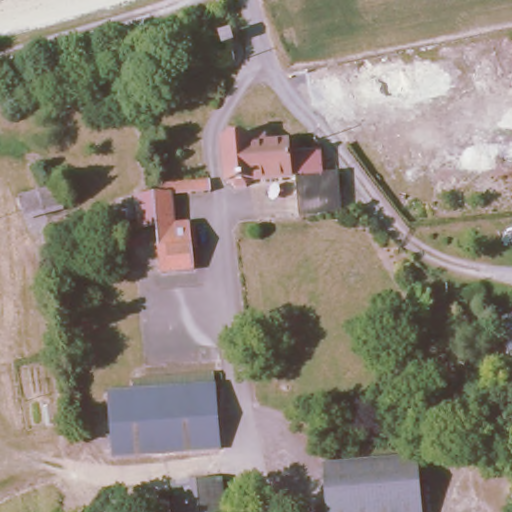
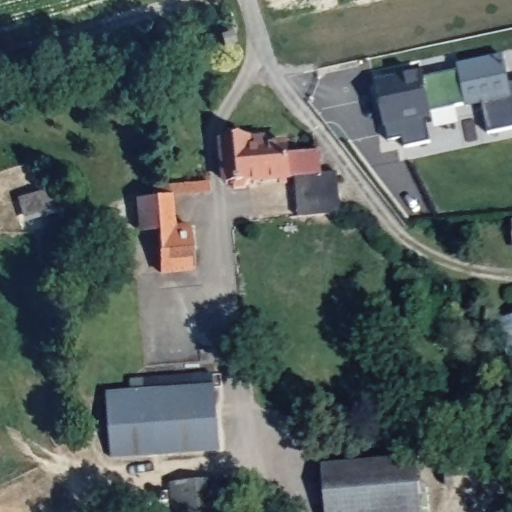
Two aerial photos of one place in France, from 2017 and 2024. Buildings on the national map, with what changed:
unchanged [(216,42),(215,30),(228,29),(230,42),(216,42)]
demolished [(330,103),(324,72),(393,60),(396,66),(448,57),(452,82),(330,103)]
new [(422,78),(457,72),(456,67),(502,57),(507,85),(512,84),(512,129),(487,135),(480,103),(422,115),(427,144),(403,148),(405,157),(392,159),(373,84),(421,74),(422,78)]
unchanged [(290,174),(221,177),(218,132),(258,129),(260,137),(279,137),(282,149),(321,146),(322,169),(334,169),(338,206),(296,211),(290,174)]
unchanged [(62,204),(22,214),(16,191),(55,180),(62,204)]
unchanged [(153,229),(137,231),(132,192),(148,195),(148,183),(205,182),(204,194),(167,197),(170,227),(153,229)]
unchanged [(493,219),(512,218),(512,241),(495,242),(493,219)]
unchanged [(170,227),(182,227),(185,267),(158,270),(153,229),(170,227)]
unchanged [(512,323),(512,353),(503,326),(512,323)]
unchanged [(118,390),(135,387),(135,371),(214,364),(217,381),(223,442),(123,450),(118,390)]
unchanged [(420,452),(425,512),(327,512),(323,460),(420,452)]
unchanged [(231,512),(179,512),(177,482),(228,478),(231,512)]

